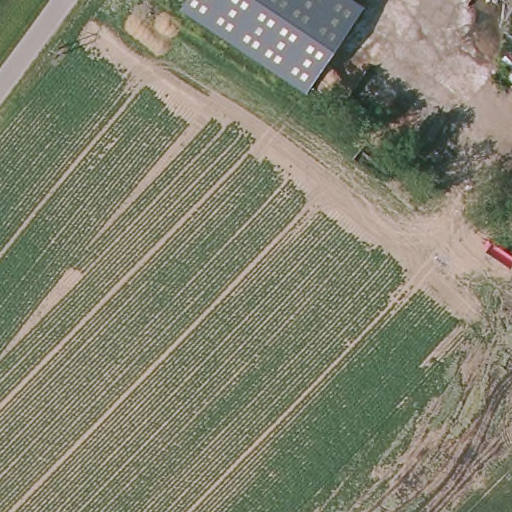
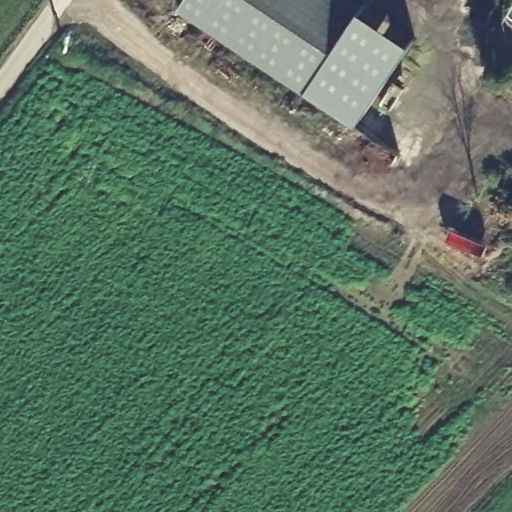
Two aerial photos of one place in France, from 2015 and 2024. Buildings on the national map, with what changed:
unchanged [(307,91),(181,7),(186,0),(360,0),(365,4),(307,91)]
new [(415,37),(357,124),(307,91),(365,4),(415,37)]

